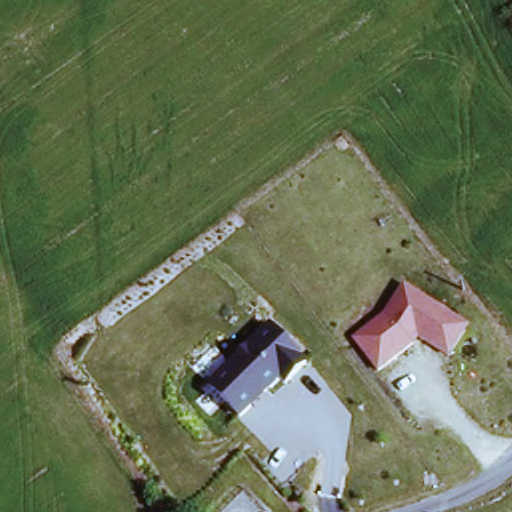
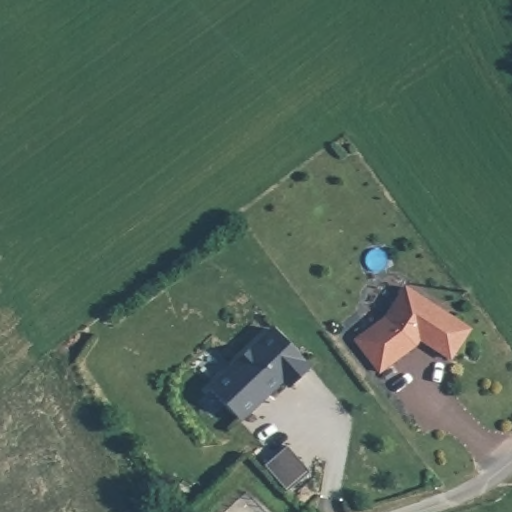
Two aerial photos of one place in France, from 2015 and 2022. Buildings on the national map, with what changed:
unchanged [(391,311),(410,285),(446,310),(444,314),(470,332),(453,357),(420,334),(415,340),(416,342),(383,367),(360,336),(391,311)]
unchanged [(242,417),(214,383),(276,328),(310,367),(290,384),(286,378),(267,393),(262,393),(255,401),(253,407),(242,417)]

